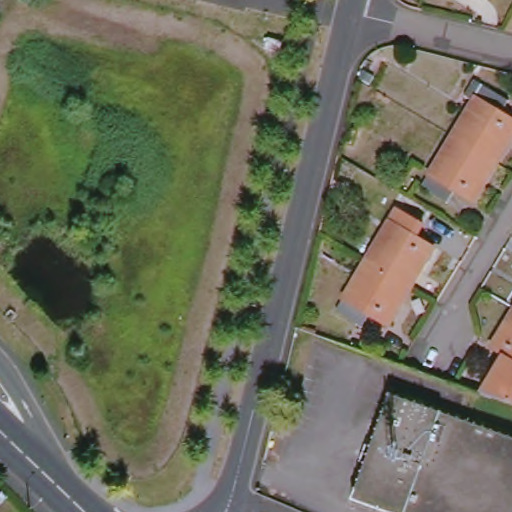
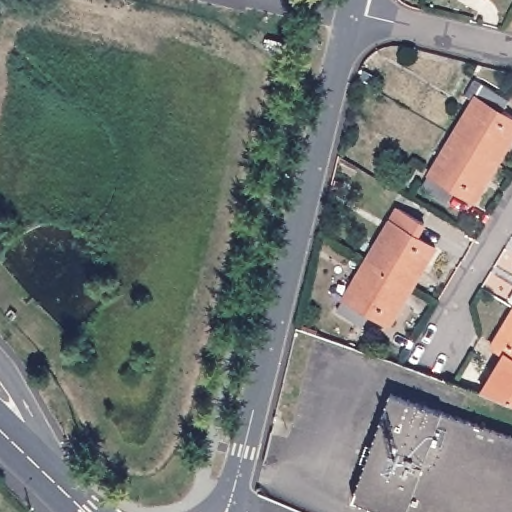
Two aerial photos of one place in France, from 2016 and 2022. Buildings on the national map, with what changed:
unchanged [(483,84),(508,100),(501,111),(512,118),(512,136),(496,161),(452,135),(483,84)]
unchanged [(496,161),(473,200),(455,189),(447,202),(421,186),(452,135),(496,161)]
unchanged [(366,260),(397,208),(423,223),(416,235),(435,246),(410,286),(366,260)]
unchanged [(410,286),(388,324),(369,313),(362,324),(337,309),(366,260),(410,286)]
unchanged [(490,379),(493,381),(498,380),(504,369),(511,356),(492,345),(512,311),(512,403),(482,393),(490,379)]
unchanged [(393,395),(512,437),(512,512),(396,512),(355,498),(393,395)]

